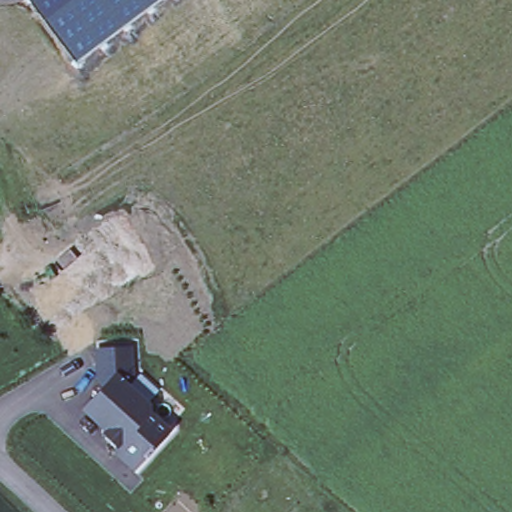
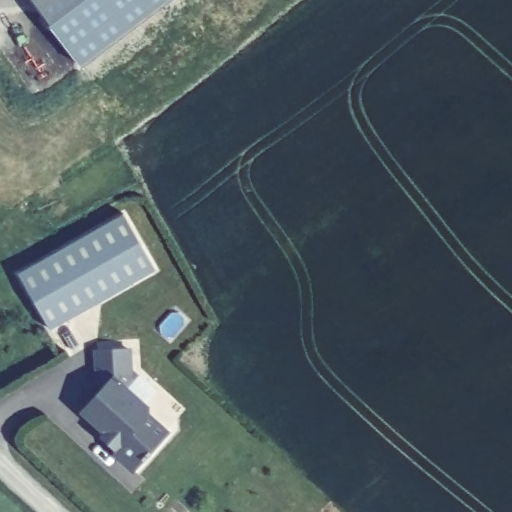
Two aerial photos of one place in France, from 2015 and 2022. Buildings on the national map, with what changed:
unchanged [(80,65),(31,0),(167,0),(80,65)]
new [(155,270),(50,330),(18,273),(123,213),(155,270)]
unchanged [(145,406),(147,413),(167,431),(149,450),(151,452),(145,459),(143,458),(132,469),(115,453),(115,447),(102,435),(102,428),(83,411),(105,388),(97,381),(95,351),(128,349),(130,380),(123,386),(145,406)]

